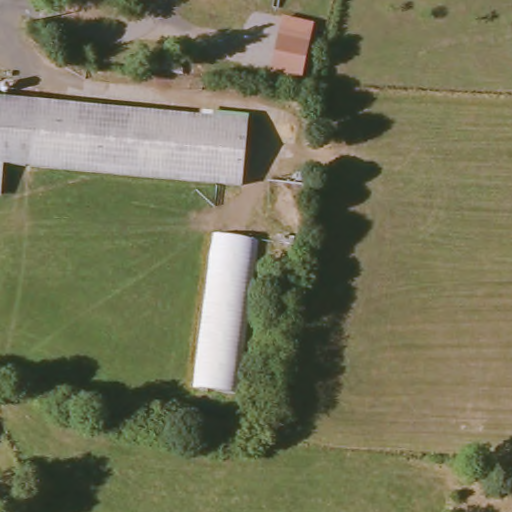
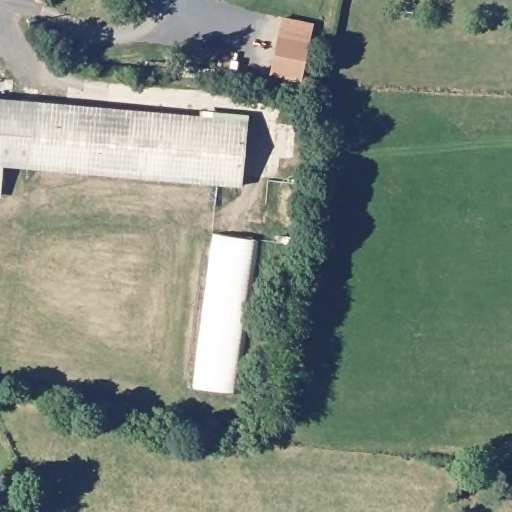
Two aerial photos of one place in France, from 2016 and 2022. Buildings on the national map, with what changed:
unchanged [(311,37),(302,79),(269,71),(277,30),(311,37)]
unchanged [(251,120),(243,180),(4,157),(0,190),(0,99),(251,120)]
unchanged [(217,239),(261,244),(242,397),(196,392),(217,239)]

